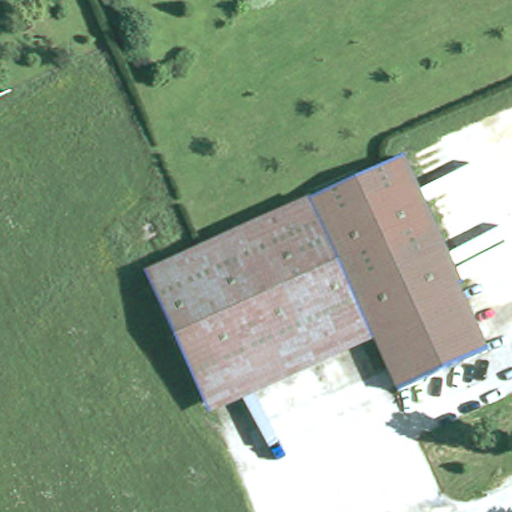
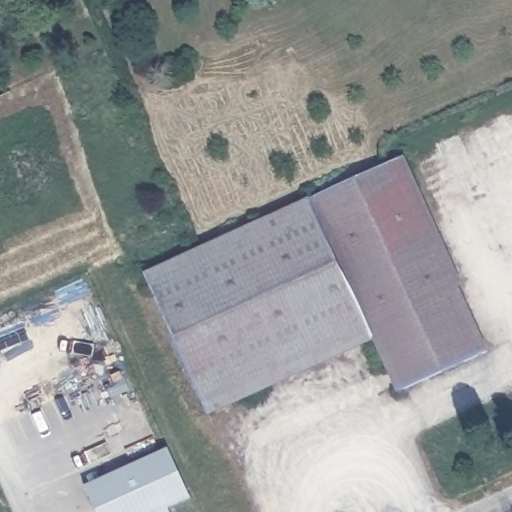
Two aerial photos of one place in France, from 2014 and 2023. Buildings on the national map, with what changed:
unchanged [(492,353),(402,394),(371,328),(259,379),(201,250),(403,160),(463,290),(477,319),(492,353)]
unchanged [(259,379),(207,403),(148,274),(201,250),(259,379)]
new [(167,448),(190,499),(168,509),(170,512),(96,512),(84,485),(167,448)]

